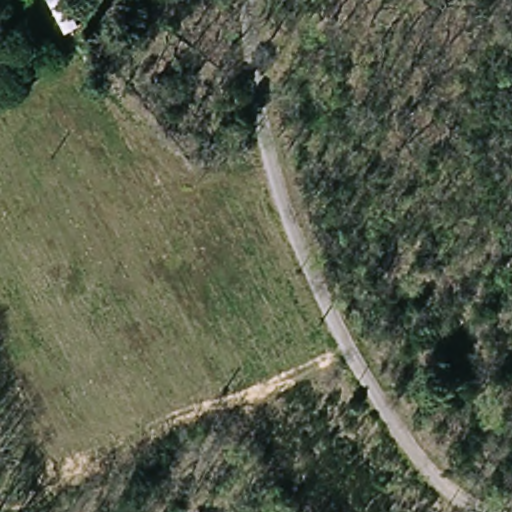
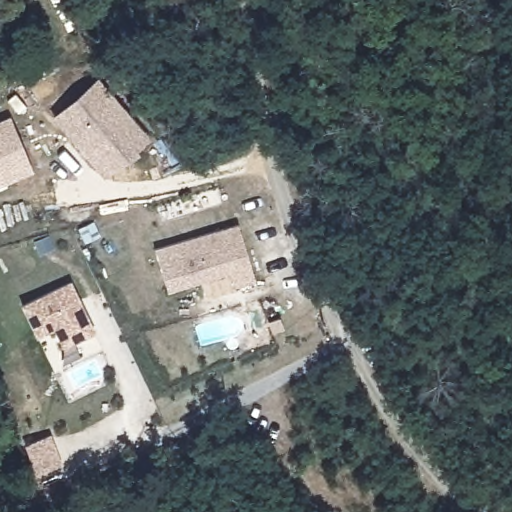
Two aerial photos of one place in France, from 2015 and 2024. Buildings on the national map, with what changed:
new [(97,77),(149,139),(104,178),(52,117),(97,77)]
new [(1,104),(10,99),(52,80),(59,95),(64,91),(70,97),(58,109),(54,102),(45,107),(46,110),(19,121),(16,113),(10,115),(34,172),(0,186),(0,120),(8,117),(1,104)]
new [(239,222),(255,282),(233,288),(229,273),(167,292),(155,247),(239,222)]
new [(70,280),(96,332),(64,348),(54,329),(37,337),(22,304),(70,280)]

